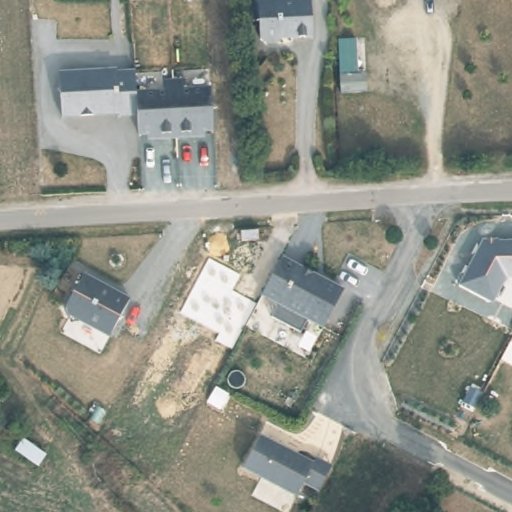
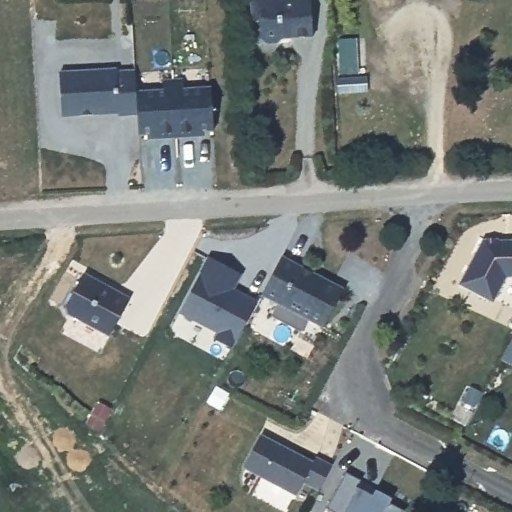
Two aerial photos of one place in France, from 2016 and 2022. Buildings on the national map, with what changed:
unchanged [(309,35),(280,36),(275,42),(261,42),(256,38),(256,20),(249,20),(248,0),(307,0),(309,35)]
unchanged [(357,40),(358,75),(367,74),(369,95),(341,95),(337,41),(357,40)]
unchanged [(119,73),(119,76),(137,74),(137,89),(138,96),(139,118),(120,120),(120,117),(62,121),(61,77),(119,73)]
unchanged [(165,95),(165,85),(185,84),(185,93),(212,92),(215,134),(199,135),(200,140),(156,143),(155,138),(140,138),(139,118),(138,96),(165,95)]
unchanged [(505,280),(494,304),(458,284),(484,239),(512,239),(512,279),(505,280)]
unchanged [(346,290),(326,329),(311,320),(305,334),(272,318),(280,305),(260,294),(281,256),(346,290)]
unchanged [(233,349),(212,339),(215,332),(178,314),(207,259),(242,276),(235,291),(257,301),(233,349)]
unchanged [(132,299),(112,340),(64,315),(82,273),(132,299)]
unchanged [(314,461),(317,457),(333,465),(320,493),(304,485),(298,497),(245,469),(262,434),(314,461)]
demolished [(59,460),(51,474),(15,451),(23,439),(59,460)]
new [(361,480),(357,487),(372,495),(375,490),(393,499),(390,505),(405,511),(404,512),(334,512),(327,509),(346,473),(361,480)]

